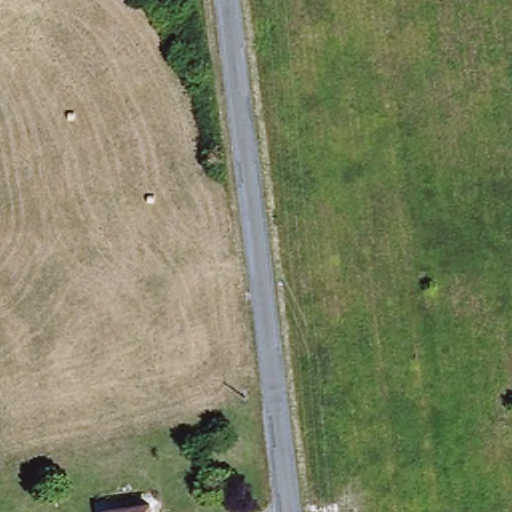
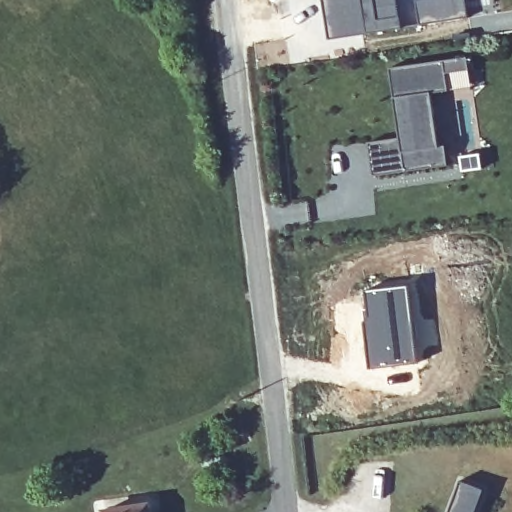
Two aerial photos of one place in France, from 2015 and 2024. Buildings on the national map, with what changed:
new [(330,36),(325,0),(399,0),(403,27),(330,36)]
new [(467,0),(470,18),(443,21),(420,25),(417,0),(467,0)]
new [(472,69),(448,72),(451,90),(432,94),(440,146),(447,145),(451,165),(373,176),(368,142),(400,137),(390,67),(470,55),(472,69)]
new [(410,283),(418,362),(371,368),(366,289),(410,283)]
new [(486,490),(478,512),(450,512),(462,480),(486,490)]
unchanged [(152,503),(153,512),(110,512),(110,508),(152,503)]

